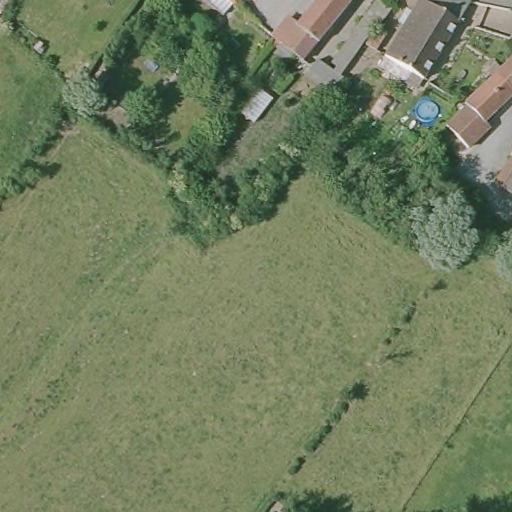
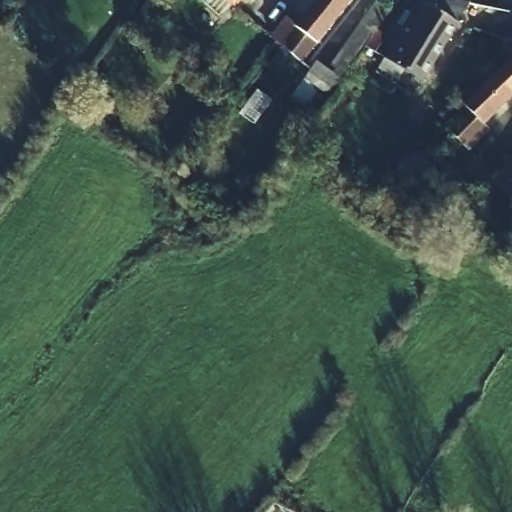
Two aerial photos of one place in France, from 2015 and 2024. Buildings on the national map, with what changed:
unchanged [(202,0),(237,0),(224,18),(202,0)]
unchanged [(282,48),(317,0),(347,0),(302,63),(282,48)]
unchanged [(306,77),(316,64),(332,75),(339,66),(333,63),(374,0),(386,8),(332,93),(306,77)]
unchanged [(417,67),(410,76),(384,60),(421,0),(472,0),(427,73),(417,67)]
unchanged [(512,92),(512,95),(482,124),(487,129),(467,151),(445,131),(493,78),(512,92)]
unchanged [(512,152),(512,196),(512,197),(490,182),(512,152)]

